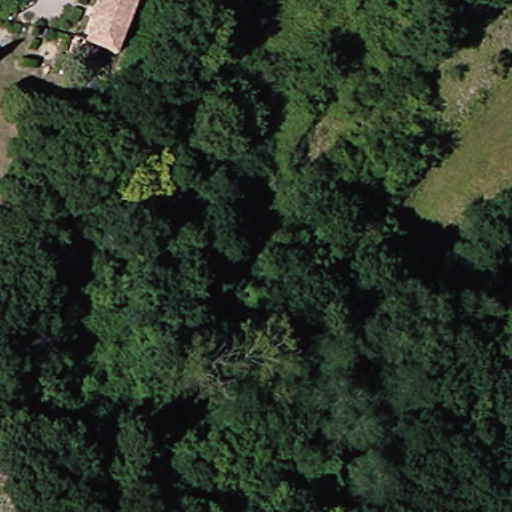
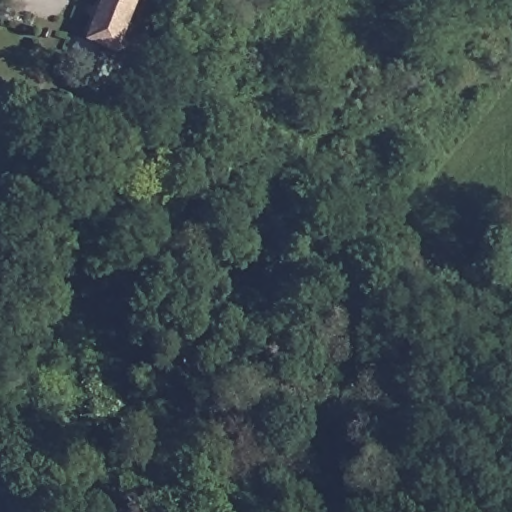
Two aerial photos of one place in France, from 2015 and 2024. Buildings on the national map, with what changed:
unchanged [(111,0),(144,0),(127,52),(96,42),(111,0)]

